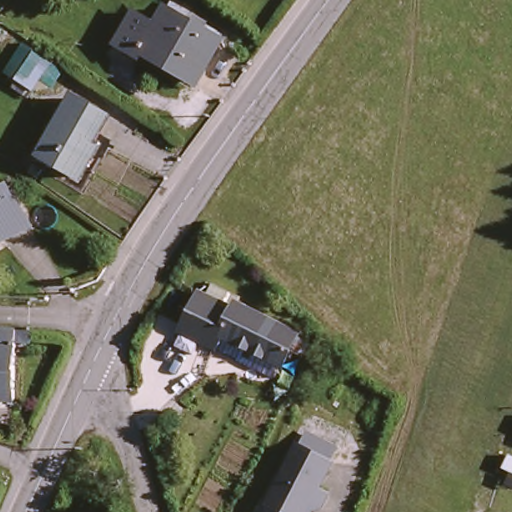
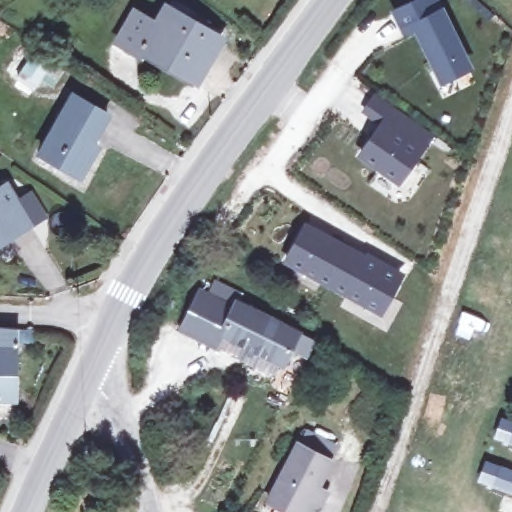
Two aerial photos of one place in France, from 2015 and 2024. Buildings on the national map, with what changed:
new [(389,11),(413,0),(437,0),(440,8),(444,6),(474,71),(440,86),(414,32),(402,36),(389,11)]
unchanged [(141,9),(166,23),(176,5),(201,20),(205,14),(218,21),(215,27),(228,36),(205,79),(151,48),(147,55),(122,41),(141,9)]
unchanged [(66,75),(55,90),(41,83),(33,93),(7,78),(24,50),(66,75)]
unchanged [(77,89),(110,108),(95,135),(100,138),(83,168),(44,146),(77,89)]
new [(377,126),(359,113),(373,95),(433,136),(399,187),(356,158),(377,126)]
unchanged [(32,226),(7,241),(0,245),(0,191),(9,186),(32,226)]
new [(304,222),(405,274),(381,317),(282,264),(304,222)]
unchanged [(233,310),(236,304),(298,333),(283,365),(221,336),(215,348),(181,331),(199,293),(233,310)]
unchanged [(30,352),(16,351),(15,406),(0,405),(0,335),(30,338),(30,352)]
unchanged [(334,458),(316,491),(325,496),(317,512),(303,512),(272,496),(302,440),(334,458)]

